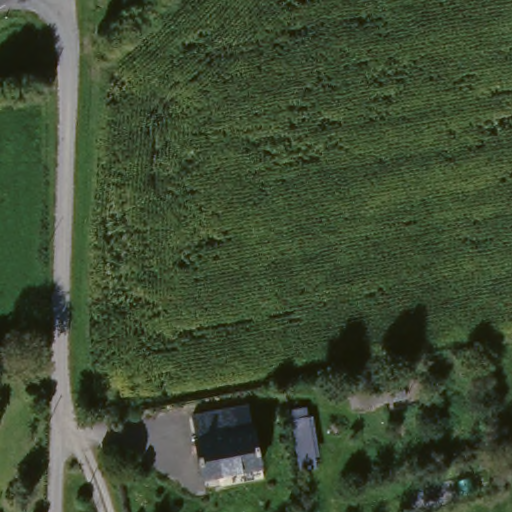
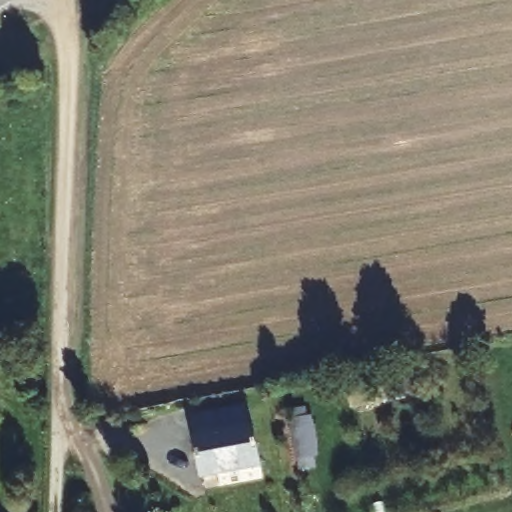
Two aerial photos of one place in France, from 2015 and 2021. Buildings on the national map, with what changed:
unchanged [(357,406),(353,390),(345,394),(342,382),(390,373),(394,397),(357,406)]
unchanged [(194,412),(249,400),(262,465),(200,476),(194,435),(198,435),(194,412)]
unchanged [(325,469),(302,476),(292,411),(317,407),(325,469)]

